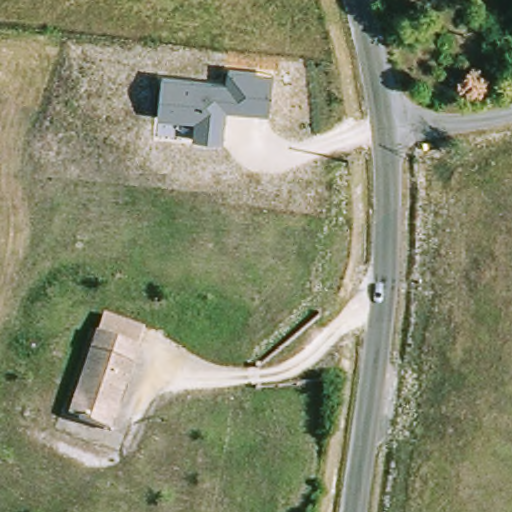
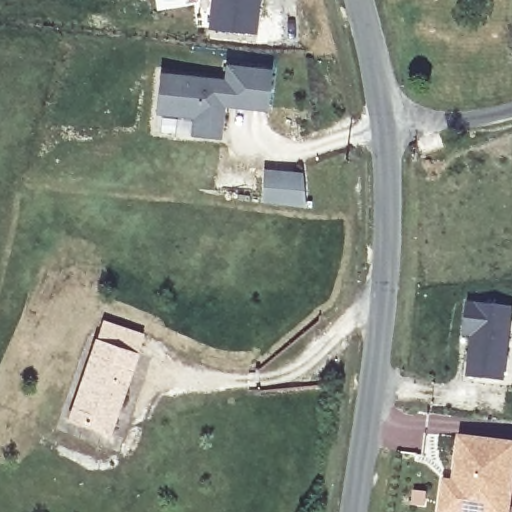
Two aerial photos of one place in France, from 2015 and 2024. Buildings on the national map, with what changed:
new [(208,29),(210,0),(260,0),(256,34),(208,29)]
unchanged [(267,111),(224,107),(222,140),(191,136),(193,119),(156,115),(160,73),(224,79),(226,65),(271,69),(267,111)]
new [(302,172),(306,206),(261,202),(263,168),(302,172)]
unchanged [(466,376),(470,336),(463,336),(465,303),(512,308),(512,314),(506,380),(466,376)]
unchanged [(103,320),(144,333),(137,354),(134,352),(96,340),(103,320)]
unchanged [(75,423),(86,389),(78,386),(94,339),(134,352),(107,433),(75,423)]
new [(443,478),(452,480),(458,435),(512,442),(512,502),(511,512),(438,512),(443,478)]

